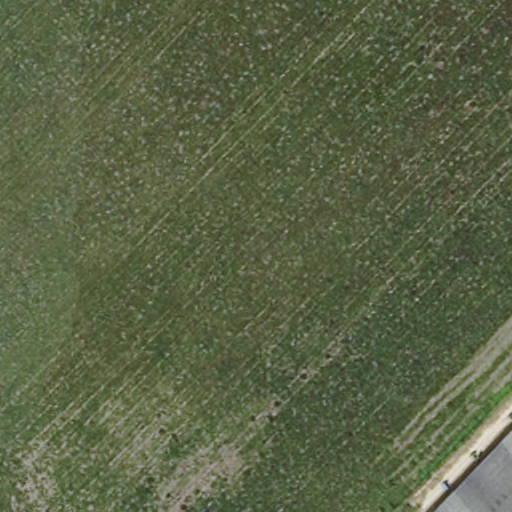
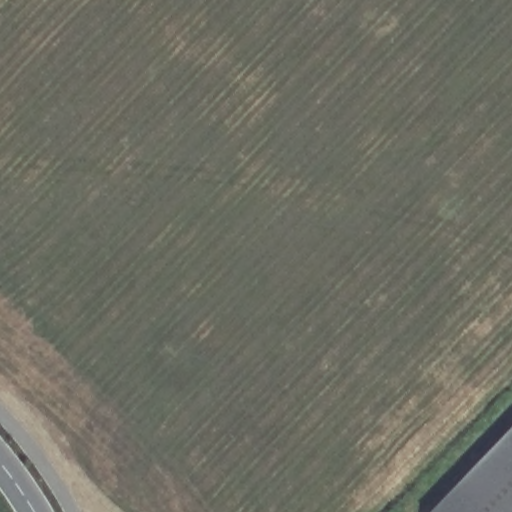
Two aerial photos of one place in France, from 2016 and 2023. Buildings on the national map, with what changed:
unchanged [(432,512),(512,428),(512,512),(432,512)]

